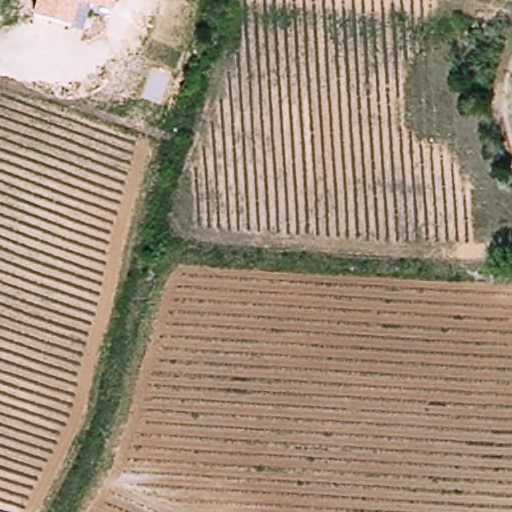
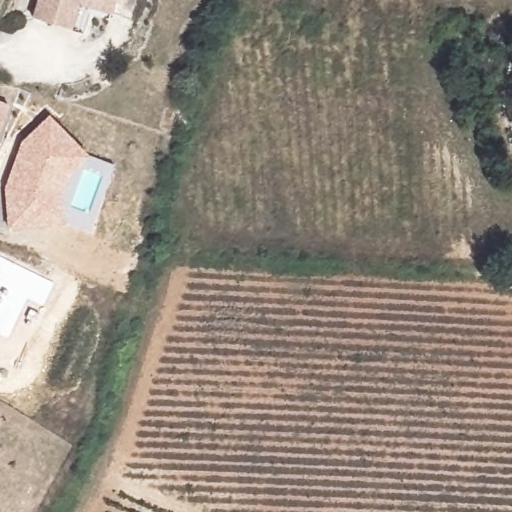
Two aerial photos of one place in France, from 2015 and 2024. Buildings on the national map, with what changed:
unchanged [(114,0),(112,10),(79,3),(71,27),(33,17),(38,0),(114,0)]
new [(10,103),(0,125),(0,100),(10,103)]
new [(88,153),(68,174),(61,191),(65,222),(8,228),(4,188),(22,140),(49,115),(88,153)]
new [(53,282),(42,304),(27,296),(8,334),(0,330),(0,258),(53,282)]

